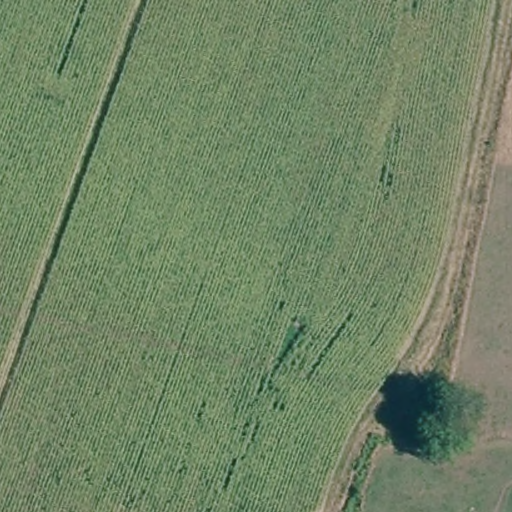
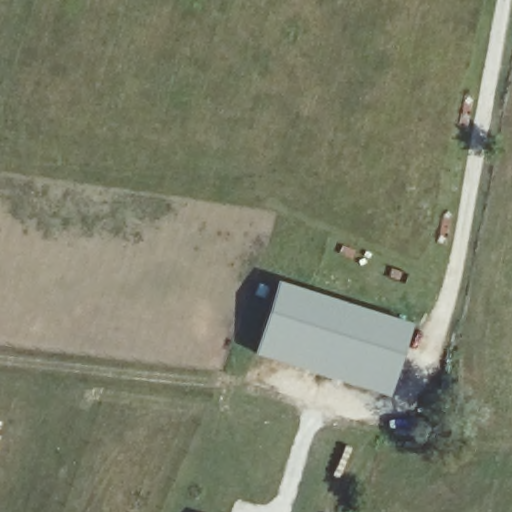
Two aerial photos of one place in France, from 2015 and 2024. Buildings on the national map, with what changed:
new [(257,354),(280,280),(415,323),(393,397),(257,354)]

